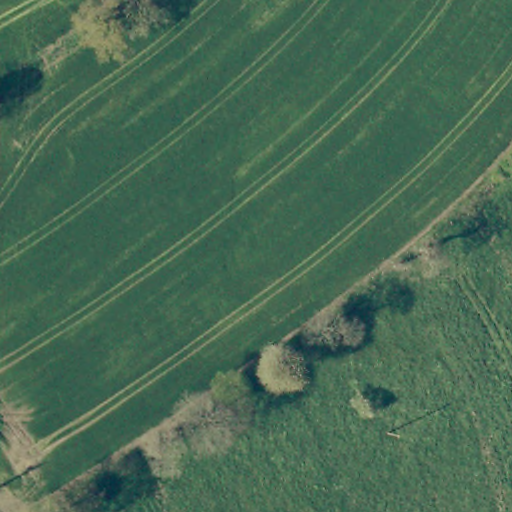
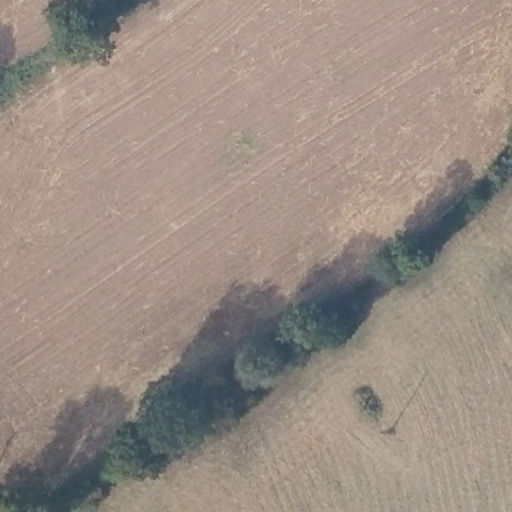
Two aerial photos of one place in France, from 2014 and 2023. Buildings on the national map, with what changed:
[]

